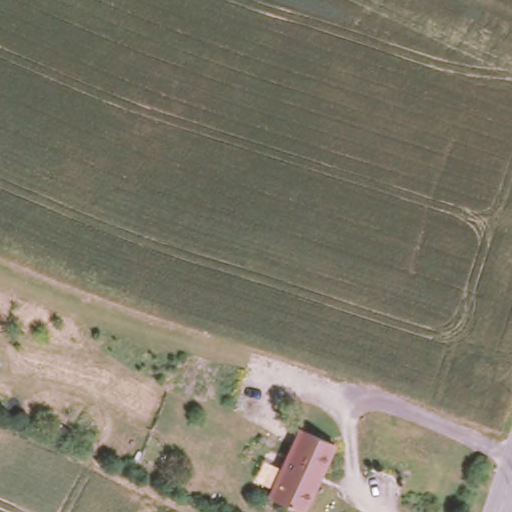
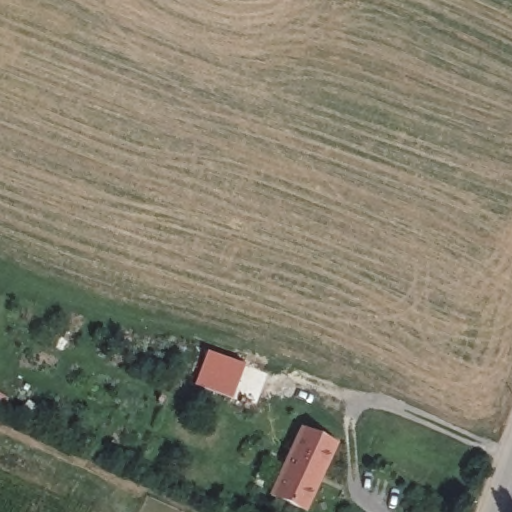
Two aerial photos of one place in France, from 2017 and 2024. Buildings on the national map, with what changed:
new [(194,386),(205,352),(243,365),(231,399),(194,386)]
unchanged [(297,426),(335,443),(306,512),(298,512),(265,496),(297,426)]

